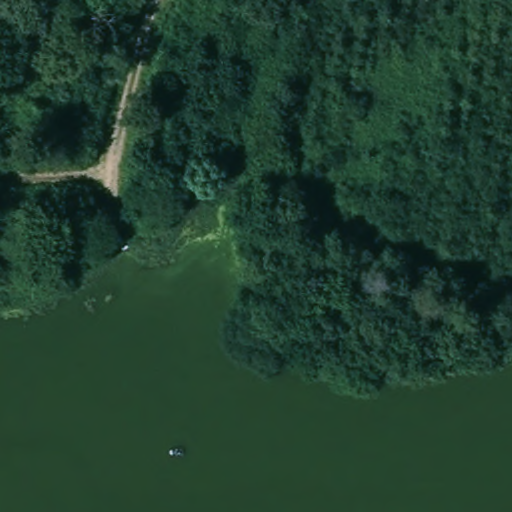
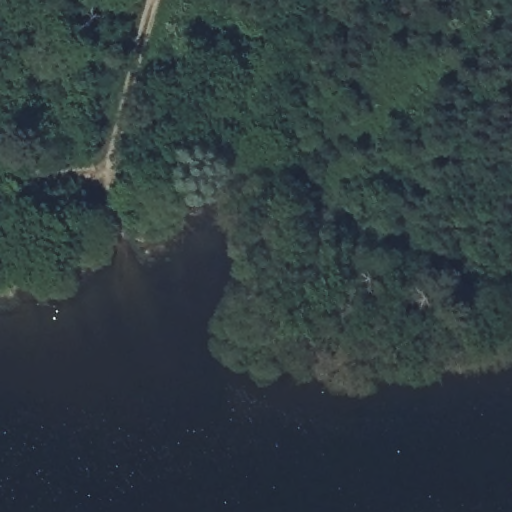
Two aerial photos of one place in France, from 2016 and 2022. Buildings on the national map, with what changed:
unchanged [(190,16),(179,57),(158,52),(169,11),(190,16)]

